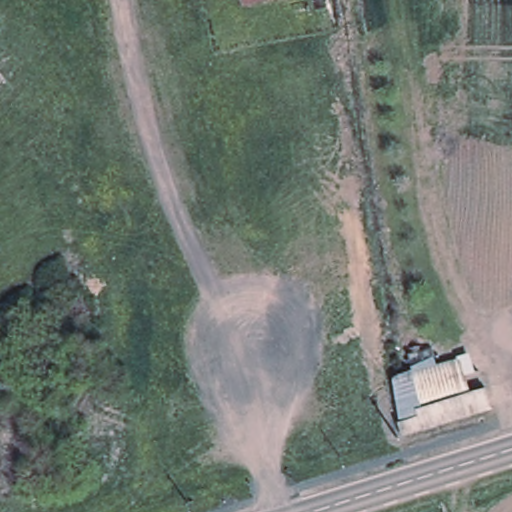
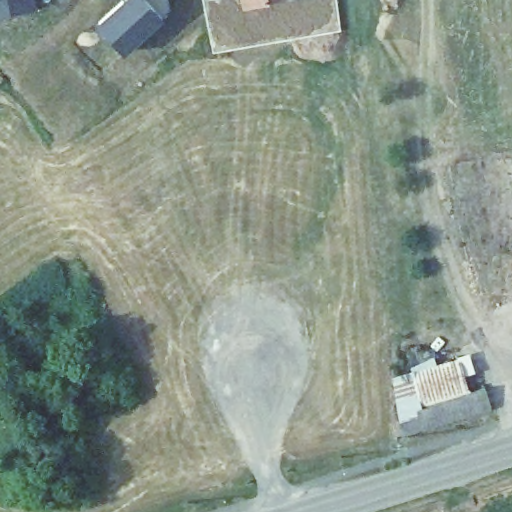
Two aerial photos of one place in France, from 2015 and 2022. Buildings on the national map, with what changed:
new [(10,20),(0,22),(0,0),(8,0),(10,20)]
new [(171,9),(164,17),(125,52),(98,22),(122,0),(169,0),(171,9)]
unchanged [(246,5),(245,0),(264,0),(246,5)]
unchanged [(394,377),(423,368),(461,357),(471,391),(489,386),(494,409),(403,436),(394,377)]

